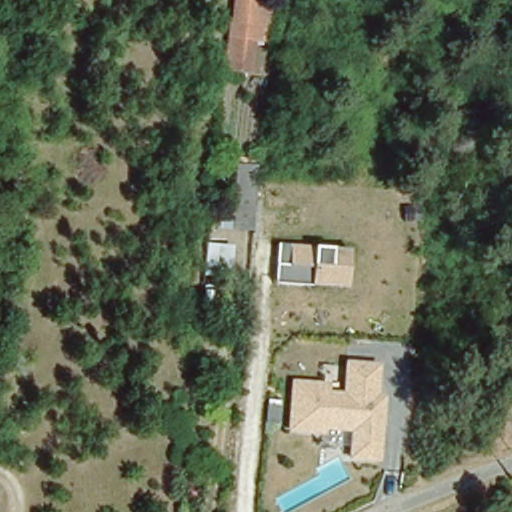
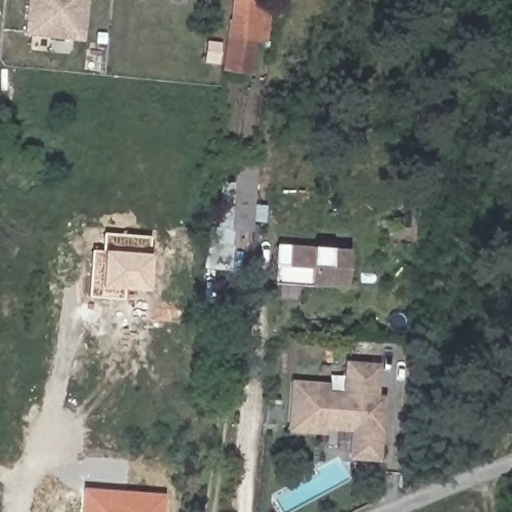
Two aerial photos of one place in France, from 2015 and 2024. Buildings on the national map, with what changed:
new [(22,35),(26,0),(86,0),(82,41),(22,35)]
unchanged [(271,0),(266,42),(256,42),(253,72),(220,70),(230,0),(271,0)]
unchanged [(227,224),(232,161),(255,161),(250,225),(227,224)]
new [(88,298),(91,250),(101,251),(104,234),(150,237),(148,255),(145,292),(119,290),(123,300),(88,298)]
unchanged [(346,290),(272,284),(277,245),(349,250),(346,290)]
unchanged [(346,460),(349,435),(326,432),(325,437),(286,433),(289,380),(328,382),(328,374),(344,373),(344,360),(380,362),(377,397),(385,397),(379,462),(346,460)]
new [(163,494),(161,512),(80,512),(82,487),(163,494)]

